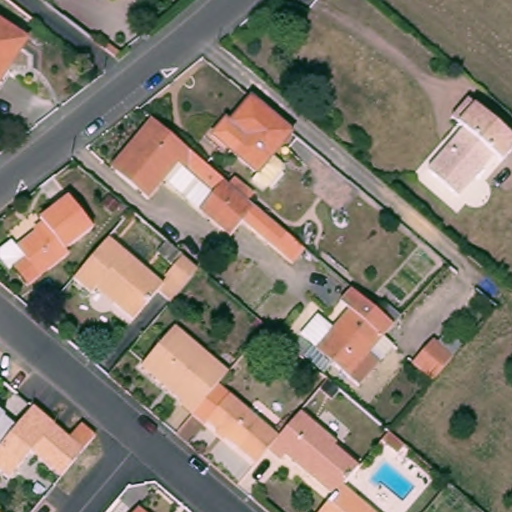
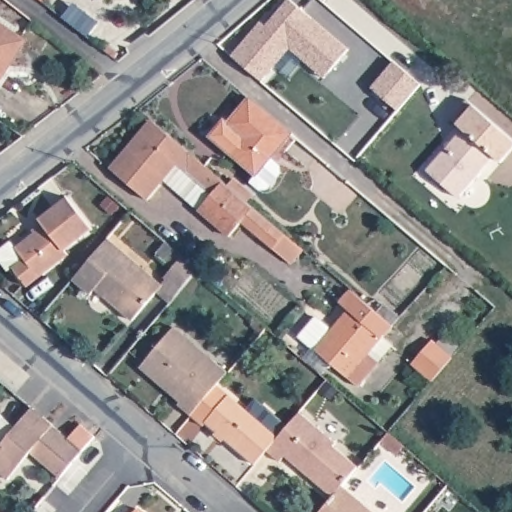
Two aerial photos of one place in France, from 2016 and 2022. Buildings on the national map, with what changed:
new [(290,47),(275,64),(261,81),(232,56),(261,21),(266,26),(288,0),(292,0),(293,1),(349,48),(330,71),(325,76),(303,59),(290,47)]
unchanged [(5,74),(10,76),(0,91),(0,20),(29,39),(5,74)]
new [(395,61),(421,84),(398,110),(371,88),(395,61)]
unchanged [(220,120),(224,123),(246,98),(286,133),(265,158),(275,166),(276,174),(264,188),(256,189),(246,181),(251,174),(206,135),(220,120)]
unchanged [(462,129),(450,119),(467,100),(512,139),(512,148),(500,162),(493,156),(457,196),(427,171),(462,129)]
unchanged [(286,263),(237,222),(225,236),(180,198),(159,180),(142,200),(110,172),(105,168),(121,149),(146,120),(280,234),(298,249),(286,263)]
unchanged [(77,186),(102,220),(76,240),(80,245),(36,277),(21,257),(17,260),(6,244),(7,237),(19,228),(26,238),(44,224),(40,219),(50,212),(49,209),(77,186)]
unchanged [(86,291),(69,277),(103,238),(156,281),(178,256),(193,269),(167,299),(155,288),(129,318),(107,301),(90,287),(86,291)]
unchanged [(387,325),(363,354),(373,362),(351,387),(310,350),(311,349),(296,336),(312,316),(328,329),(344,310),(334,302),(345,289),(387,325)]
unchanged [(212,384),(186,414),(174,403),(176,400),(137,366),(170,328),(222,372),(212,384)]
unchanged [(413,359),(423,347),(433,336),(452,353),(443,364),(432,376),(413,359)]
unchanged [(208,435),(211,432),(200,422),(197,424),(186,414),(212,384),(224,394),(273,437),(262,450),(249,466),(220,440),(217,444),(208,435)]
unchanged [(32,453),(10,479),(0,471),(0,411),(16,424),(34,405),(70,436),(82,422),(96,435),(62,477),(32,453)]
unchanged [(295,412),(330,443),(328,446),(353,467),(337,486),(327,497),(280,456),(275,461),(262,450),(273,437),(295,412)]
unchanged [(337,486),(368,512),(314,512),(327,497),(337,486)]
unchanged [(139,508),(143,512),(135,512),(139,508)]

